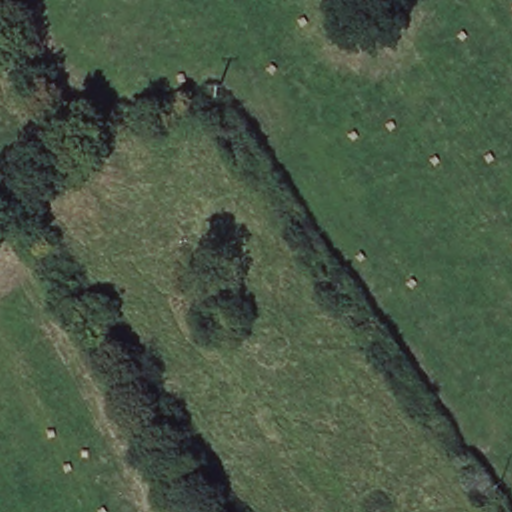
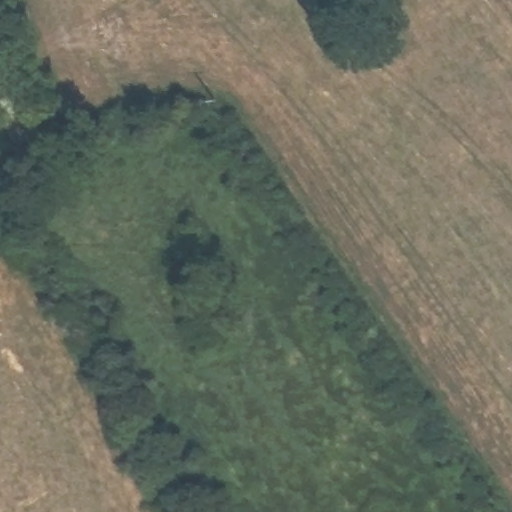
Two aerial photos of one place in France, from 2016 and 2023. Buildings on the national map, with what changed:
[]

